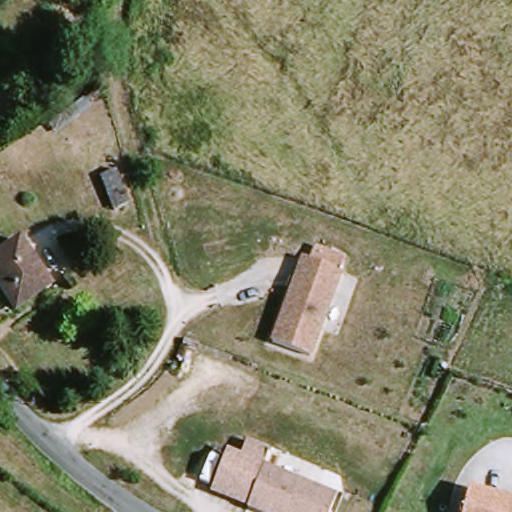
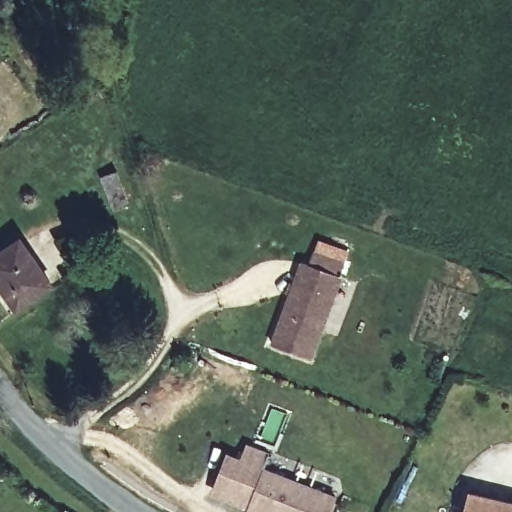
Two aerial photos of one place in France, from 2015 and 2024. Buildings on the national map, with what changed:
unchanged [(135,210),(117,216),(104,181),(121,176),(135,210)]
unchanged [(50,287),(17,312),(0,287),(0,258),(19,244),(50,287)]
unchanged [(302,264),(340,277),(312,356),(273,340),(302,264)]
unchanged [(244,463),(250,449),(268,457),(262,471),(336,501),(332,512),(252,512),(247,510),(250,502),(215,488),(228,456),(244,463)]
unchanged [(512,509),(512,512),(463,512),(466,498),(512,509)]

